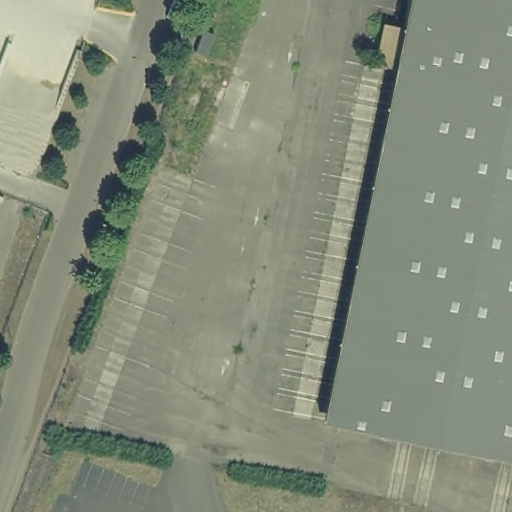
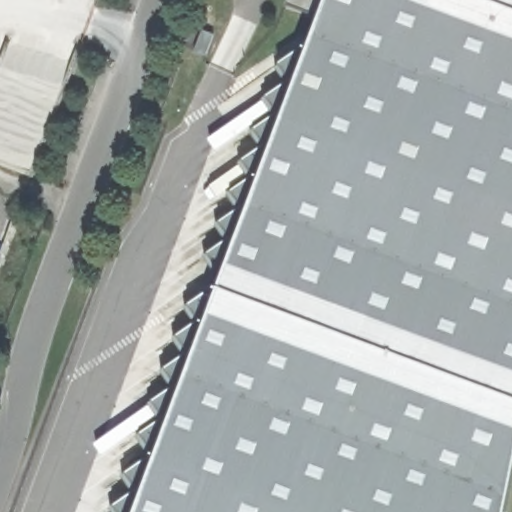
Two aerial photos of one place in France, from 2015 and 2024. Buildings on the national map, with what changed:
new [(109,509),(136,489),(131,491),(122,476),(153,454),(150,449),(145,451),(136,437),(163,417),(158,419),(148,404),(175,384),(170,386),(160,372),(187,352),(182,354),(172,339),(194,323),(184,308),(204,293),(216,297),(226,272),(217,269),(213,271),(203,256),(225,240),(215,225),(236,209),(227,194),(248,179),(238,163),(260,148),(250,132),(276,113),(272,114),(262,99),(289,80),(287,78),(283,80),(274,68),(302,46),(309,49),(320,19),(285,5),(287,0),(512,0),(512,484),(506,512),(111,512),(109,509)]
demolished [(512,0),(512,460),(319,421),(407,0),(512,0)]
new [(202,30),(212,34),(205,55),(194,51),(202,30)]

